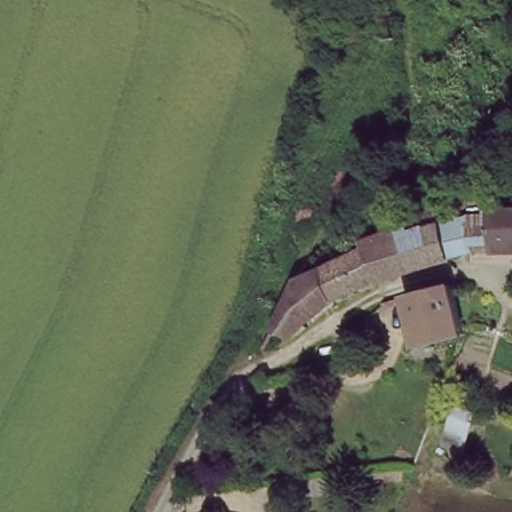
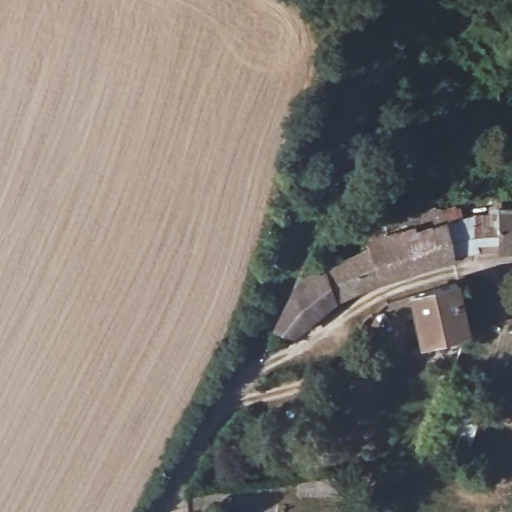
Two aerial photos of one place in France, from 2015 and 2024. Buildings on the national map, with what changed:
unchanged [(502,207),(512,207),(512,245),(503,245),(502,207)]
unchanged [(297,271),(372,248),(448,223),(458,260),(381,281),(334,300),(312,311),(281,331),(267,323),(297,271)]
unchanged [(416,293),(460,278),(475,329),(425,340),(416,293)]
unchanged [(495,422),(478,463),(460,457),(476,414),(495,422)]

